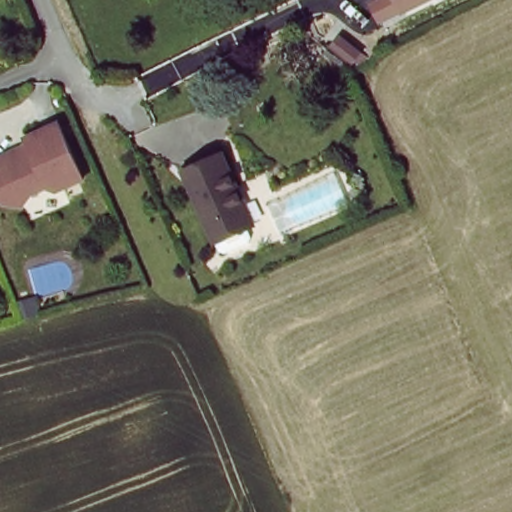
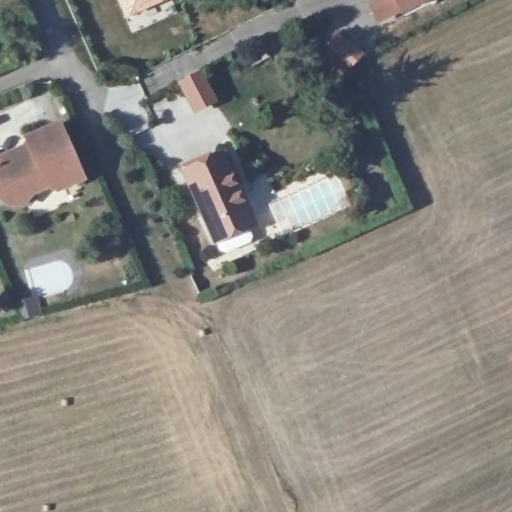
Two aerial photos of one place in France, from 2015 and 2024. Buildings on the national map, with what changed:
new [(121,0),(172,0),(129,19),(121,0)]
unchanged [(368,9),(382,0),(435,0),(379,27),(368,9)]
unchanged [(4,158),(36,144),(33,138),(66,123),(90,179),(65,190),(52,187),(37,193),(30,205),(13,202),(6,186),(0,189),(0,156),(4,158)]
unchanged [(246,229),(215,243),(184,174),(223,155),(237,187),(254,225),(246,229)]
unchanged [(29,303),(34,319),(18,323),(12,308),(27,303),(29,303)]

